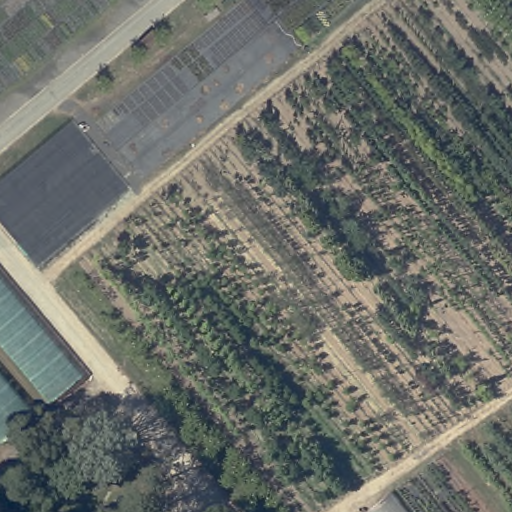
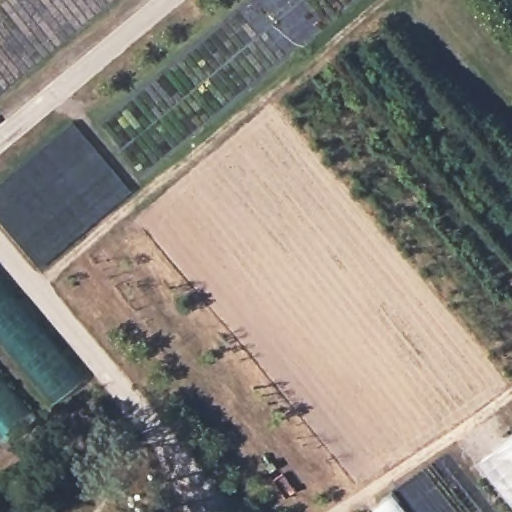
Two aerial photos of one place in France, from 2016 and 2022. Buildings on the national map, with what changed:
unchanged [(41,392),(0,342),(0,277),(74,363),(41,392)]
unchanged [(0,417),(0,384),(16,403),(0,417)]
new [(475,463),(512,434),(512,508),(475,463)]
unchanged [(404,512),(369,512),(390,495),(404,512)]

